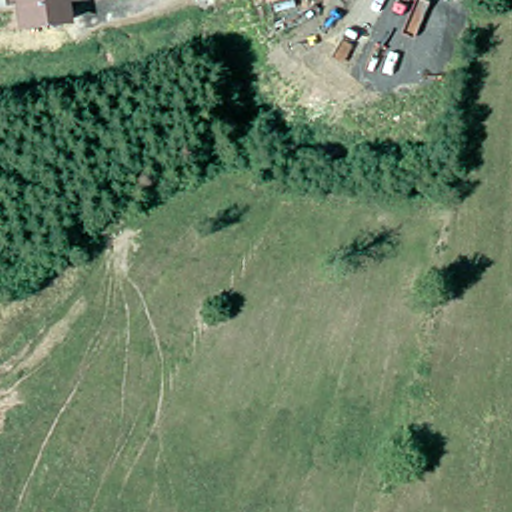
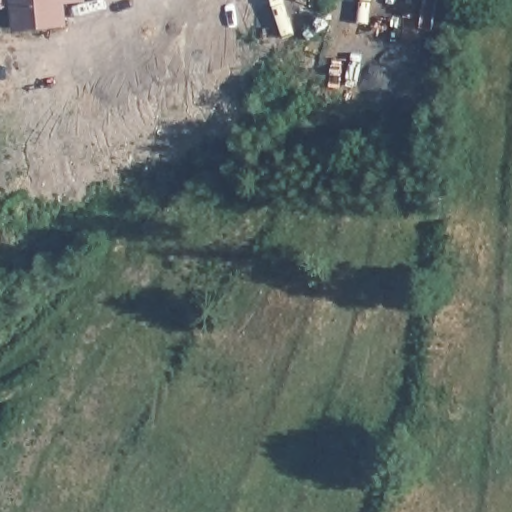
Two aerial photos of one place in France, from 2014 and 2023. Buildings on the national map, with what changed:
unchanged [(64,32),(16,35),(14,14),(2,15),(1,0),(82,0),(83,10),(75,10),(63,11),(64,32)]

